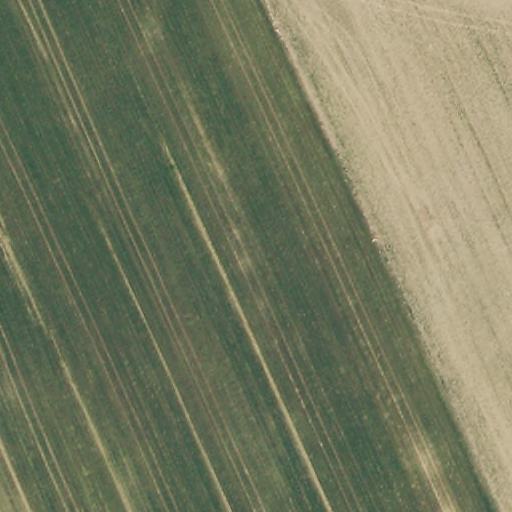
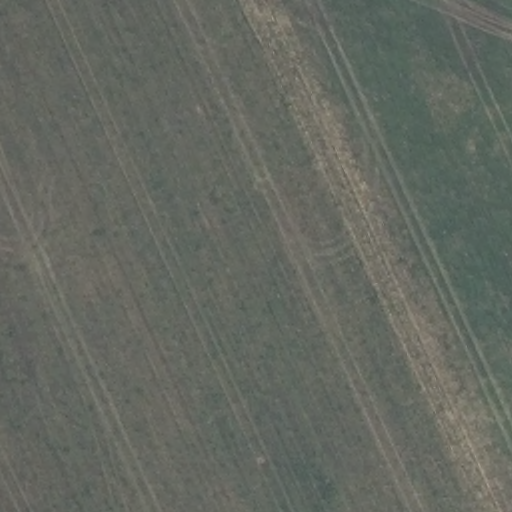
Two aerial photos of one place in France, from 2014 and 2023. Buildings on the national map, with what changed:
[]

